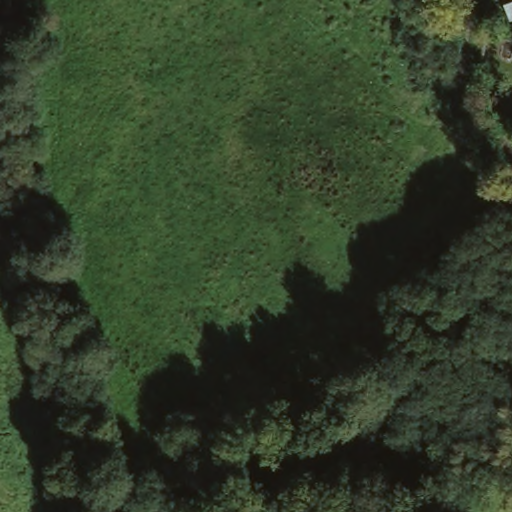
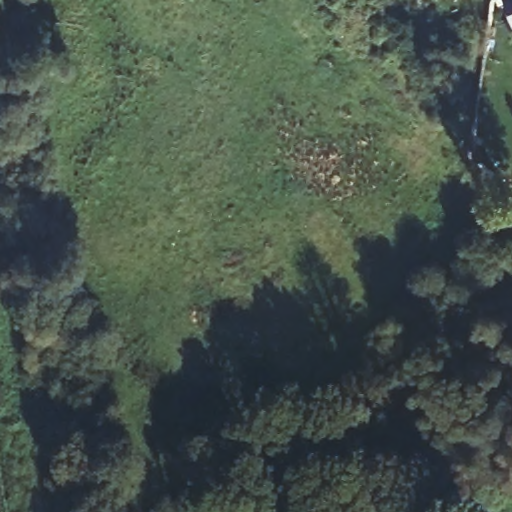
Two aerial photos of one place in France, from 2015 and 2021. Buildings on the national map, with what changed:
unchanged [(507,0),(512,0),(512,12),(507,0)]

